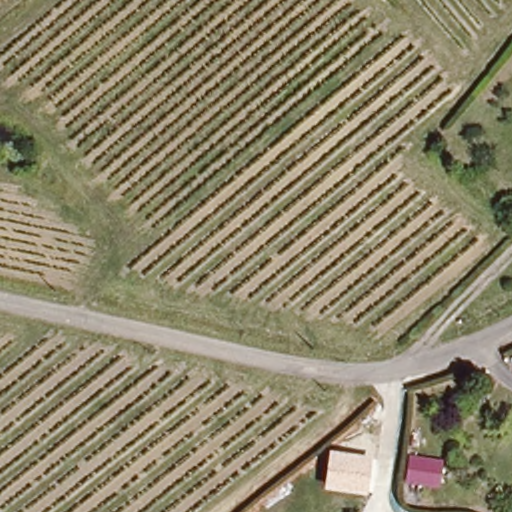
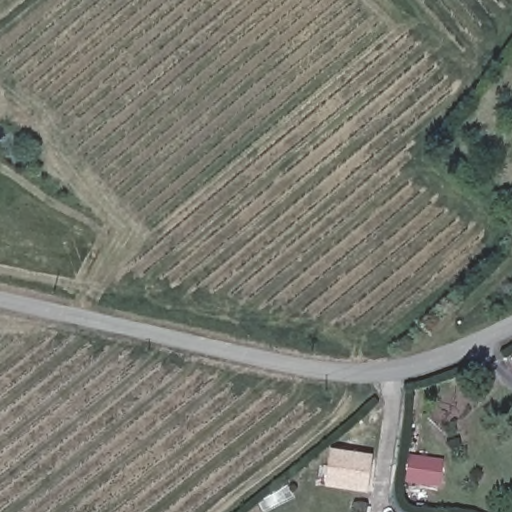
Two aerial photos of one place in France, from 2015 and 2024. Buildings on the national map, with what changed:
unchanged [(367,494),(325,488),(329,450),(372,456),(367,494)]
unchanged [(439,486),(405,482),(409,455),(442,460),(439,486)]

